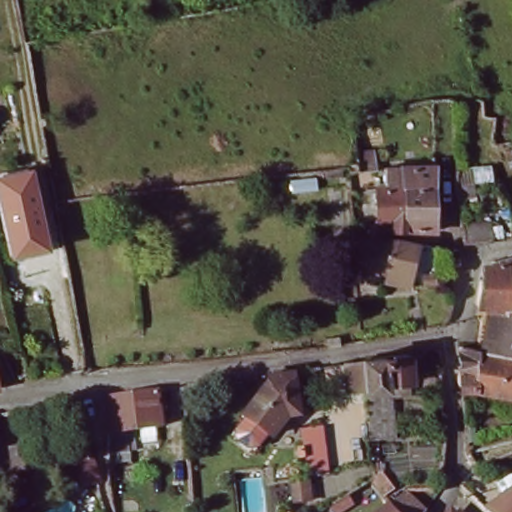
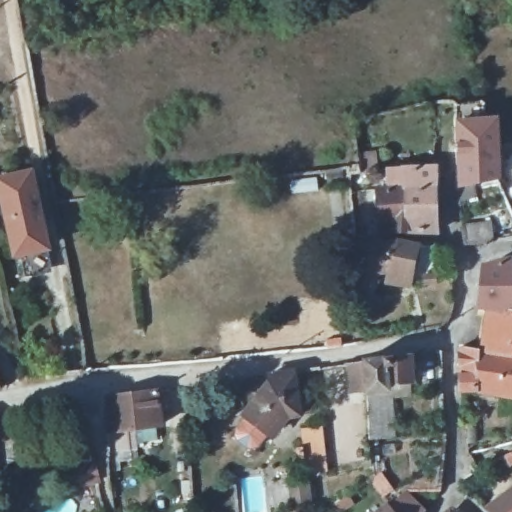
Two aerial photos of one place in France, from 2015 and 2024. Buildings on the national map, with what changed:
new [(497,120),(498,189),(455,190),(453,121),(497,120)]
unchanged [(359,166),(357,154),(373,153),(376,171),(360,173),(359,166)]
unchanged [(436,231),(395,228),(394,234),(376,234),(377,218),(377,216),(377,187),(387,187),(387,170),(435,166),(435,180),(435,187),(435,213),(436,231)]
demolished [(458,208),(456,189),(455,170),(472,167),(475,186),(467,187),(470,206),(458,208)]
unchanged [(0,182),(30,175),(42,227),(37,229),(42,250),(17,255),(0,182)]
unchanged [(464,245),(461,227),(497,222),(502,241),(464,245)]
unchanged [(387,284),(388,273),(365,275),(356,276),(355,259),(353,243),(357,242),(363,241),(394,238),(415,242),(408,287),(387,284)]
unchanged [(423,277),(414,277),(420,243),(440,247),(450,249),(450,260),(450,264),(451,273),(435,275),(437,284),(424,285),(423,277)]
unchanged [(484,277),(486,272),(489,269),(510,263),(512,293),(512,316),(506,316),(482,313),(477,312),(480,294),(484,277)]
unchanged [(506,316),(512,316),(512,359),(511,359),(502,358),(492,356),(477,355),(482,313),(506,316)]
unchanged [(457,389),(457,385),(457,381),(460,377),(460,366),(460,353),(470,354),(475,354),(477,355),(492,356),(502,358),(511,359),(512,359),(512,399),(478,396),(462,397),(462,395),(460,392),(457,389)]
unchanged [(407,355),(410,383),(386,385),(387,390),(365,392),(365,391),(362,361),(402,356),(407,355)]
unchanged [(260,392),(270,391),(267,377),(292,372),(295,389),(297,411),(298,416),(283,418),(270,437),(242,417),(260,392)]
unchanged [(110,428),(107,396),(112,396),(150,391),(157,390),(160,426),(110,432),(110,428)]
unchanged [(257,448),(252,449),(245,448),(237,440),(235,435),(236,429),(243,418),(267,435),(257,448)]
unchanged [(305,471),(304,460),(297,461),(296,447),(302,447),(300,429),(323,427),(327,471),(305,471)]
unchanged [(371,440),(370,440),(370,434),(377,433),(377,439),(371,440)]
unchanged [(81,483),(77,467),(92,462),(97,480),(81,483)]
unchanged [(370,480),(375,477),(378,476),(387,489),(380,495),(370,480)]
unchanged [(311,503),(292,505),(289,483),(309,481),(311,503)]
unchanged [(489,512),(483,507),(512,486),(512,512),(489,512)]
unchanged [(392,506),(395,504),(402,498),(406,494),(422,510),(421,512),(367,512),(367,511),(378,504),(380,508),(383,505),(387,505),(392,506)]
unchanged [(462,512),(458,512),(460,510),(462,512)]

